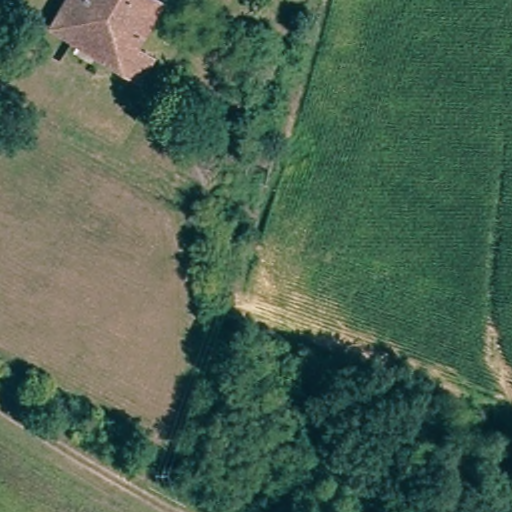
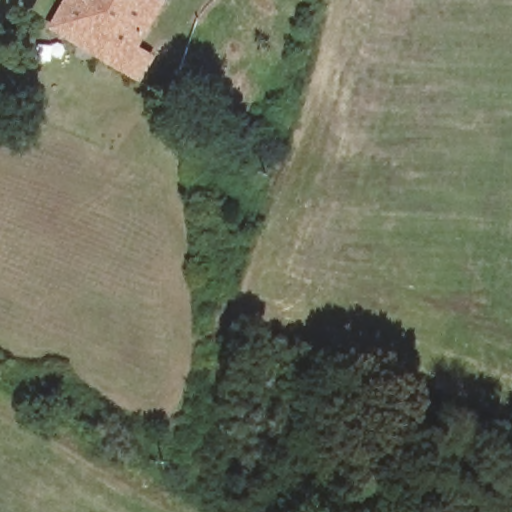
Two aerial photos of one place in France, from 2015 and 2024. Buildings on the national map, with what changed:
unchanged [(22,11),(29,0),(50,0),(38,20),(22,11)]
unchanged [(133,50),(148,59),(138,76),(51,28),(67,0),(154,0),(159,3),(133,50)]

